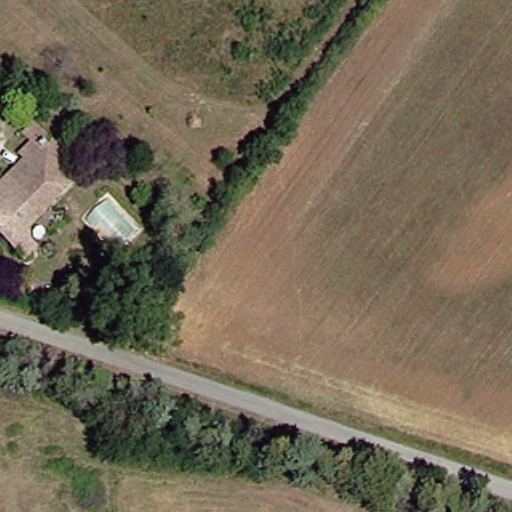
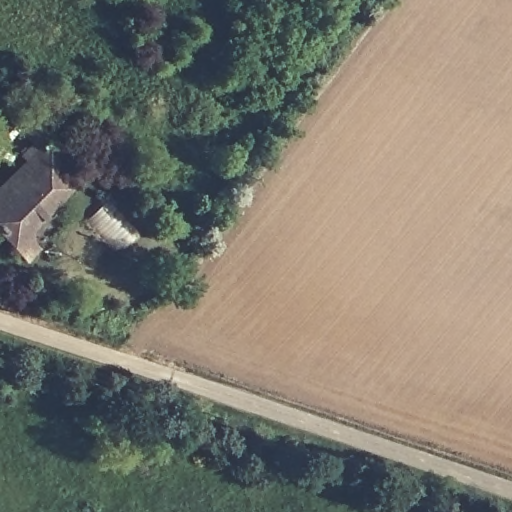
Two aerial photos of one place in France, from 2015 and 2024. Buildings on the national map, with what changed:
unchanged [(0,232),(0,189),(27,158),(22,155),(32,145),(26,139),(35,129),(84,175),(27,236),(40,249),(30,260),(0,232)]
unchanged [(27,236),(84,175),(99,189),(40,249),(27,236)]
unchanged [(29,284),(71,288),(67,305),(26,300),(29,284)]

